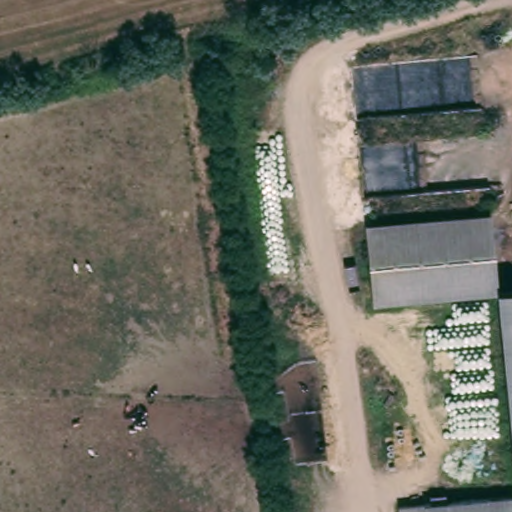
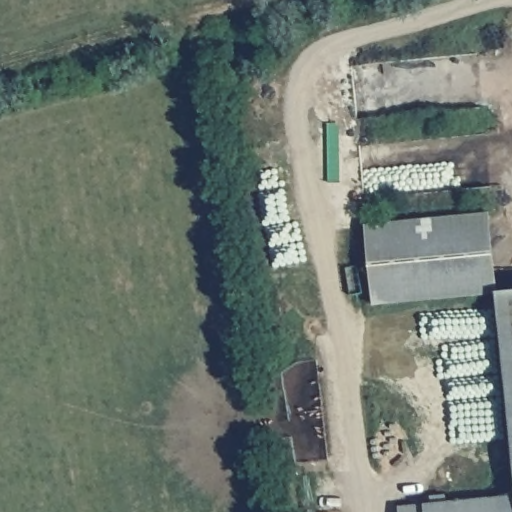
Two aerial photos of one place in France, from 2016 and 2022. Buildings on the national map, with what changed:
unchanged [(367,307),(357,220),(485,206),(492,291),(367,307)]
unchanged [(492,291),(512,289),(512,470),(492,291)]
unchanged [(512,502),(512,512),(428,512),(512,502)]

